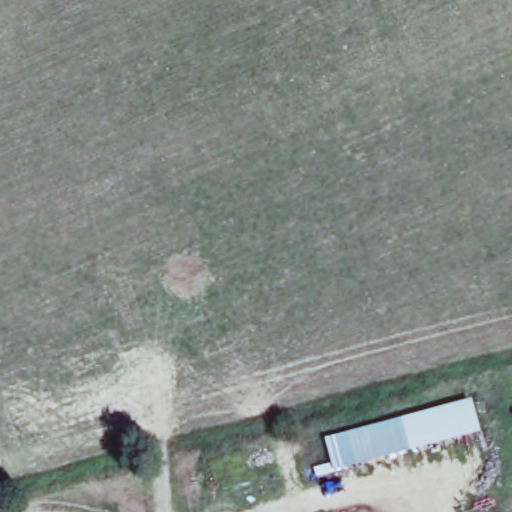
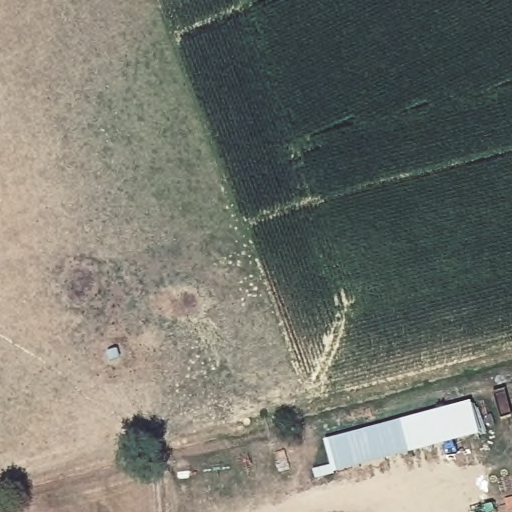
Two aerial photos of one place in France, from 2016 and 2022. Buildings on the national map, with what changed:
unchanged [(326,439),(391,422),(473,401),(482,440),(335,475),(326,439)]

